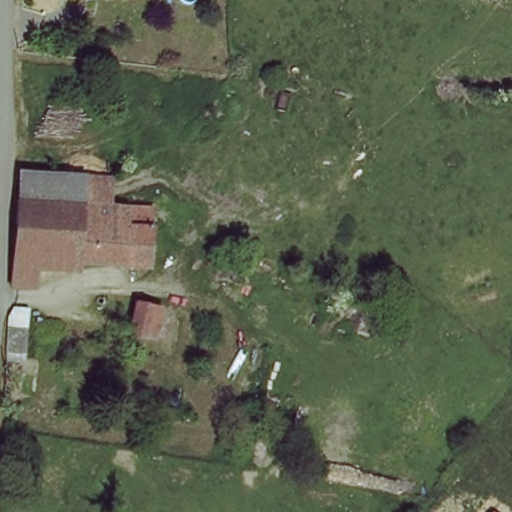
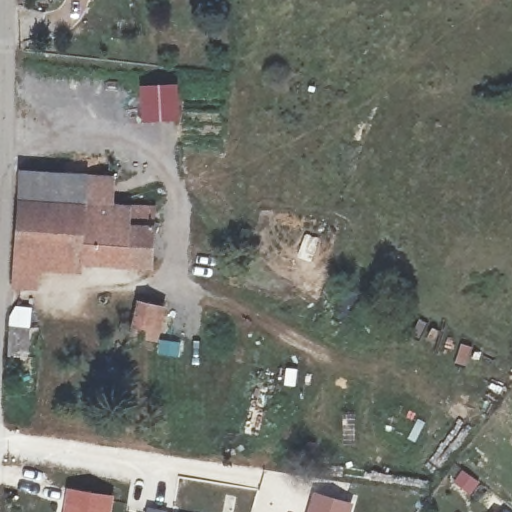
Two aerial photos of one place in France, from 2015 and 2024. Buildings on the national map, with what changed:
new [(177,82),(180,120),(140,121),(138,84),(177,82)]
unchanged [(21,201),(20,167),(117,173),(117,205),(21,201)]
unchanged [(117,205),(155,207),(155,265),(40,262),(40,283),(17,282),(21,211),(21,201),(117,205)]
unchanged [(155,341),(132,335),(138,302),(162,309),(155,341)]
unchanged [(19,321),(37,323),(36,354),(15,352),(19,321)]
new [(112,495),(110,512),(63,512),(67,488),(112,495)]
new [(355,503),(352,512),(307,512),(312,491),(355,503)]
new [(137,512),(138,506),(168,512),(137,512)]
unchanged [(495,512),(493,512),(493,511),(495,512)]

